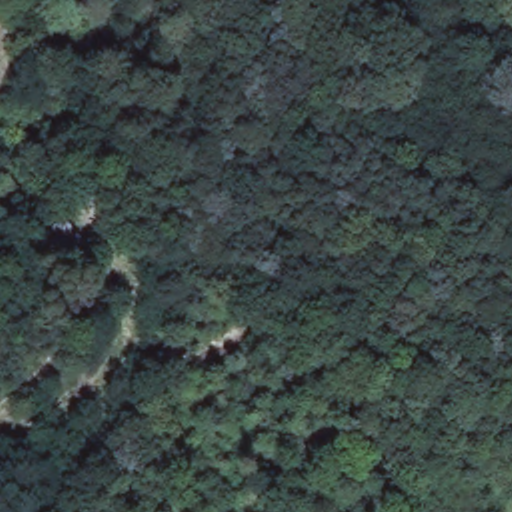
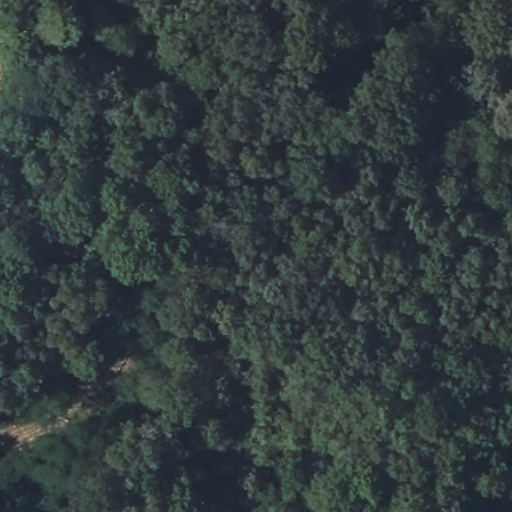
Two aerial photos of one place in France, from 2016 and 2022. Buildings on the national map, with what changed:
unchanged [(63,245),(79,234),(94,255),(76,266),(63,245)]

